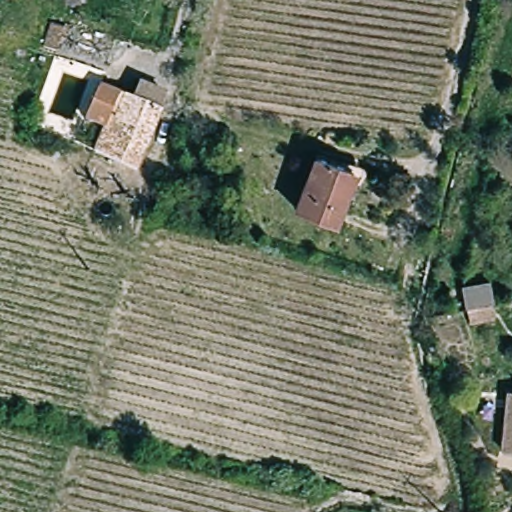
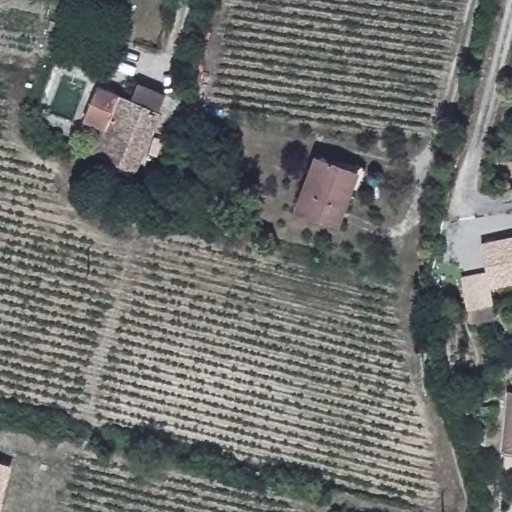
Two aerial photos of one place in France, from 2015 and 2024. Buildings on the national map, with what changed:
unchanged [(64,25),(55,54),(41,50),(49,22),(64,25)]
unchanged [(98,154),(103,135),(95,132),(85,128),(96,92),(106,95),(156,111),(138,167),(98,154)]
unchanged [(314,160),(360,176),(339,227),(295,210),(314,160)]
new [(491,290),(481,244),(512,237),(512,285),(491,290)]
unchanged [(466,309),(463,290),(487,284),(491,303),(466,309)]
unchanged [(504,453),(508,393),(512,393),(512,453),(504,453)]
new [(0,462),(13,467),(0,511),(0,462)]

